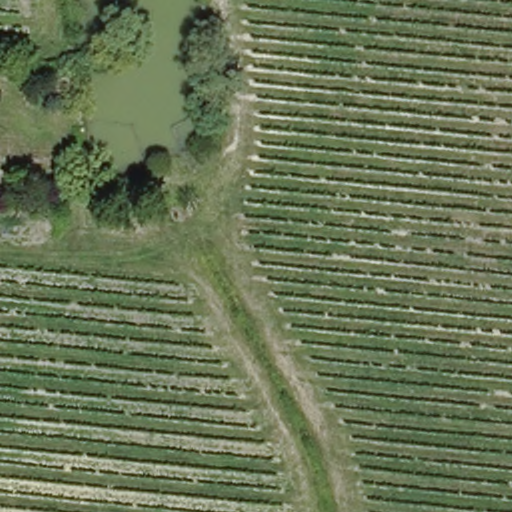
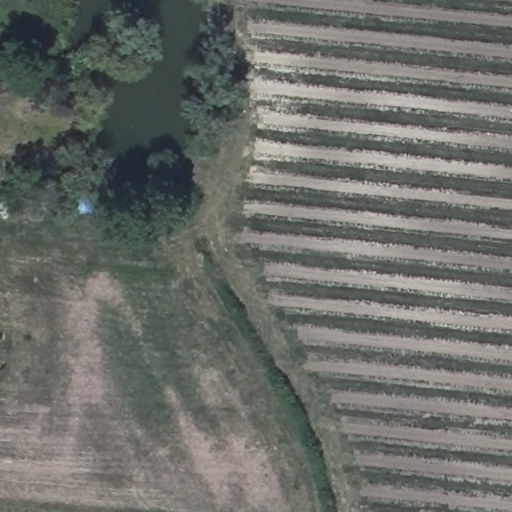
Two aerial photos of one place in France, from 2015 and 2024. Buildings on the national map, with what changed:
[]

